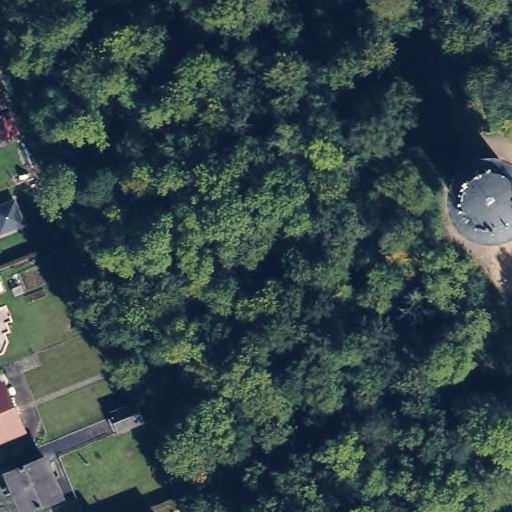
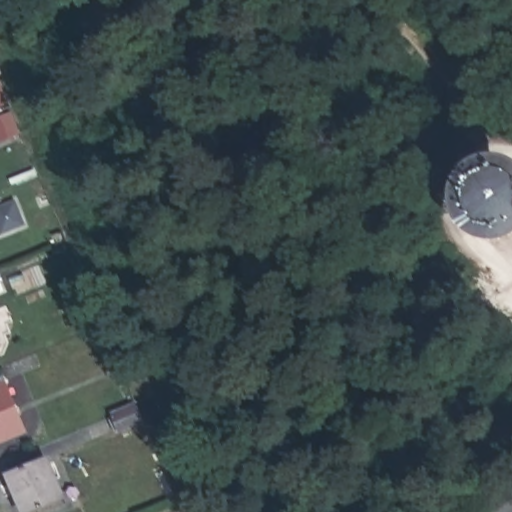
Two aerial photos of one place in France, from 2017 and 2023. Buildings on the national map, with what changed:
unchanged [(0,108),(0,99),(4,107),(0,108)]
unchanged [(0,136),(0,114),(2,113),(9,132),(0,136)]
unchanged [(0,291),(0,281),(4,290),(0,291)]
unchanged [(0,340),(0,335),(2,339),(0,340)]
unchanged [(22,429),(0,439),(0,389),(5,387),(22,429)]
unchanged [(133,401),(139,414),(117,425),(116,425),(111,427),(106,416),(112,413),(111,412),(133,401)]
unchanged [(57,498),(24,512),(18,512),(3,474),(40,459),(57,498)]

